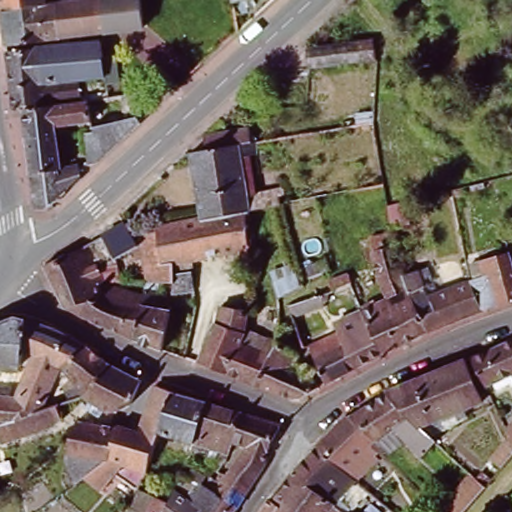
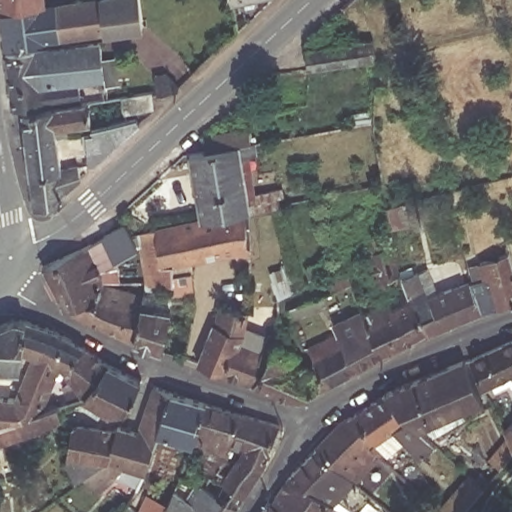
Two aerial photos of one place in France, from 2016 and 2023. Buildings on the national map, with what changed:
unchanged [(5,0),(50,0),(6,9),(5,0)]
unchanged [(65,36),(10,45),(6,9),(50,0),(61,0),(64,34),(65,36)]
unchanged [(64,34),(61,0),(145,0),(148,22),(64,34)]
unchanged [(247,14),(248,23),(234,36),(229,30),(247,14)]
unchanged [(315,64),(313,64),(311,43),(377,34),(380,56),(315,64)]
unchanged [(83,76),(82,74),(15,83),(10,50),(107,39),(110,73),(83,76)]
unchanged [(172,69),(181,85),(163,88),(161,71),(172,69)]
unchanged [(85,95),(27,104),(18,105),(15,83),(82,74),(83,76),(85,95)]
unchanged [(97,122),(96,119),(72,122),(72,133),(62,134),(62,129),(30,134),(27,107),(112,94),(125,91),(158,86),(158,89),(160,104),(131,108),(132,115),(97,122)]
unchanged [(102,159),(95,160),(91,130),(97,129),(97,122),(132,115),(142,114),(146,118),(102,159)]
unchanged [(165,224),(161,224),(160,215),(205,207),(197,149),(211,146),(209,133),(211,130),(253,124),(257,139),(262,138),(262,146),(247,149),(253,189),(288,183),(290,191),(284,192),(286,199),(255,205),(165,224)]
unchanged [(35,172),(30,134),(62,129),(62,134),(67,165),(35,172)]
unchanged [(65,173),(67,176),(79,163),(87,173),(52,205),(35,206),(35,177),(65,173)]
unchanged [(346,183),(347,189),(337,190),(336,185),(346,183)]
unchanged [(412,192),(414,200),(399,204),(397,195),(412,192)]
unchanged [(258,254),(256,254),(246,255),(245,247),(180,259),(170,262),(165,224),(255,205),(258,254)]
unchanged [(177,291),(177,280),(157,277),(152,277),(125,277),(124,270),(152,269),(149,236),(122,253),(110,231),(129,219),(131,219),(137,229),(161,224),(165,224),(170,262),(180,259),(180,270),(198,267),(200,284),(200,288),(177,291)]
unchanged [(385,278),(374,234),(391,229),(390,224),(397,223),(407,270),(407,272),(385,278)]
unchanged [(48,263),(95,240),(109,269),(108,277),(108,280),(107,294),(71,304),(48,263)]
unchanged [(490,270),(485,257),(512,249),(512,298),(487,307),(476,276),(490,270)]
unchanged [(407,270),(423,267),(434,293),(476,276),(487,307),(430,328),(411,284),(407,272),(407,270)]
unchanged [(157,277),(156,284),(164,286),(160,302),(175,308),(167,346),(140,336),(150,290),(152,277),(157,277)]
unchanged [(92,315),(71,304),(107,294),(108,280),(150,290),(140,336),(92,315)]
unchanged [(345,329),(355,322),(352,315),(368,308),(367,304),(382,297),(392,293),(411,284),(430,328),(404,341),(387,350),(360,364),(345,329)]
unchanged [(330,288),(340,322),(305,334),(293,300),(330,288)]
unchanged [(204,359),(221,319),(227,320),(229,313),(227,312),(228,303),(252,307),(249,329),(245,339),(277,352),(259,380),(204,359)]
unchanged [(17,313),(30,317),(27,348),(26,364),(0,361),(0,322),(17,313)]
unchanged [(19,394),(37,351),(27,348),(30,317),(60,327),(90,343),(63,364),(51,392),(82,383),(90,392),(62,401),(66,416),(62,420),(27,431),(5,438),(3,434),(0,434),(0,392),(19,394)]
unchanged [(331,380),(315,344),(314,344),(345,329),(360,364),(331,380)]
unchanged [(299,339),(295,346),(302,349),(298,359),(315,365),(325,384),(310,393),(302,395),(297,394),(288,392),(259,380),(277,352),(288,333),(299,339)]
unchanged [(480,356),(512,341),(512,375),(492,383),(480,356)]
unchanged [(90,343),(112,360),(90,392),(82,383),(63,364),(90,343)]
unchanged [(490,399),(430,425),(395,391),(473,357),(475,359),(490,399)]
unchanged [(145,376),(138,402),(128,409),(122,411),(118,411),(108,405),(105,413),(90,404),(95,397),(90,392),(112,360),(145,376)]
unchanged [(80,483),(80,449),(81,446),(92,417),(97,414),(121,424),(122,420),(145,429),(159,382),(175,389),(165,431),(153,476),(148,482),(142,479),(147,472),(132,465),(117,477),(101,469),(100,470),(80,483)]
unchanged [(212,401),(200,442),(165,431),(175,389),(212,401)]
unchanged [(430,425),(443,439),(429,454),(414,441),(388,446),(383,442),(357,416),(395,391),(430,425)]
unchanged [(248,412),(238,439),(233,453),(202,443),(200,442),(212,401),(248,412)]
unchanged [(150,493),(170,499),(177,487),(190,495),(197,484),(193,482),(196,478),(208,485),(215,475),(221,479),(227,470),(233,474),(252,444),(238,439),(248,412),(284,423),(272,449),(275,451),(249,491),(240,504),(235,512),(143,512),(150,493)]
unchanged [(383,442),(379,448),(377,445),(374,448),(386,459),(366,481),(325,446),(350,419),(352,422),(357,416),(383,442)]
unchanged [(512,417),(512,428),(508,420),(512,417)]
unchanged [(325,446),(366,481),(395,507),(392,512),(362,512),(343,498),(340,502),(302,472),(325,446)]
unchanged [(443,506),(440,503),(445,497),(450,501),(473,476),(461,463),(466,457),(492,482),(466,512),(437,512),(443,506)]
unchanged [(302,472),(340,502),(332,512),(298,512),(281,499),(302,472)]
unchanged [(277,497),(281,499),(298,512),(266,512),(277,497)]

